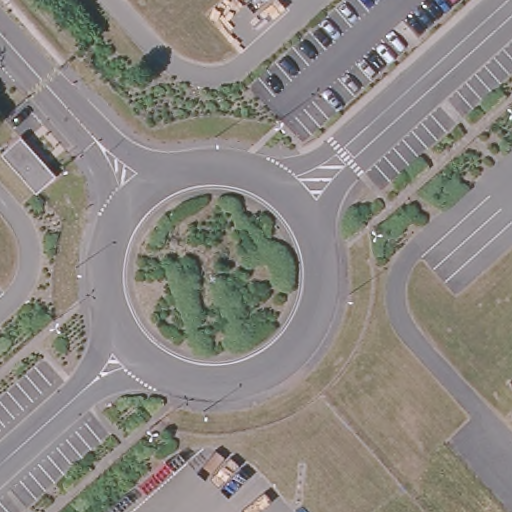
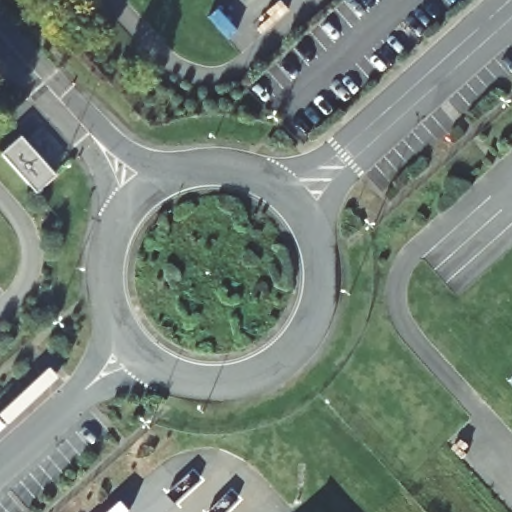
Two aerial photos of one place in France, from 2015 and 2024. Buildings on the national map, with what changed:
unchanged [(1,154),(20,136),(56,175),(37,192),(1,154)]

